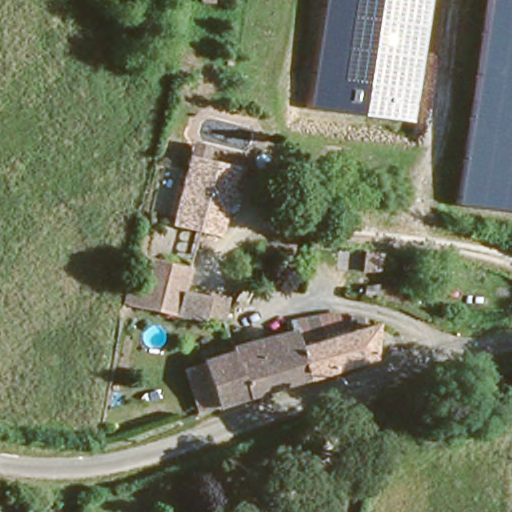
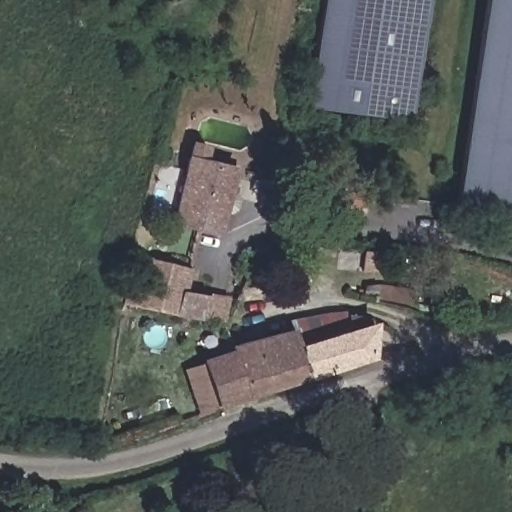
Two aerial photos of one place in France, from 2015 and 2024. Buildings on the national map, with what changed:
unchanged [(419,121),(314,108),(328,0),(435,0),(419,121)]
unchanged [(468,201),(485,0),(512,0),(512,205),(468,201)]
unchanged [(224,219),(186,214),(196,145),(234,151),(224,219)]
unchanged [(382,202),(379,215),(351,211),(353,198),(382,202)]
unchanged [(135,302),(139,289),(148,245),(189,252),(185,282),(210,288),(207,314),(135,302)]
unchanged [(384,256),(390,257),(388,283),(365,280),(369,254),(384,256)]
unchanged [(297,331),(295,315),(307,313),(362,308),(377,349),(309,369),(297,331)]
unchanged [(218,398),(208,357),(234,350),(234,346),(297,331),(309,369),(218,398)]

